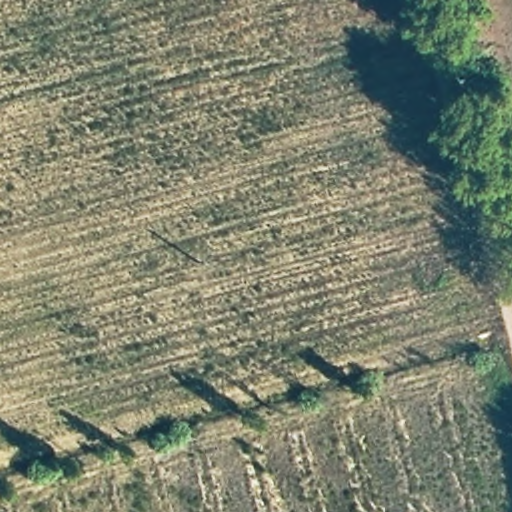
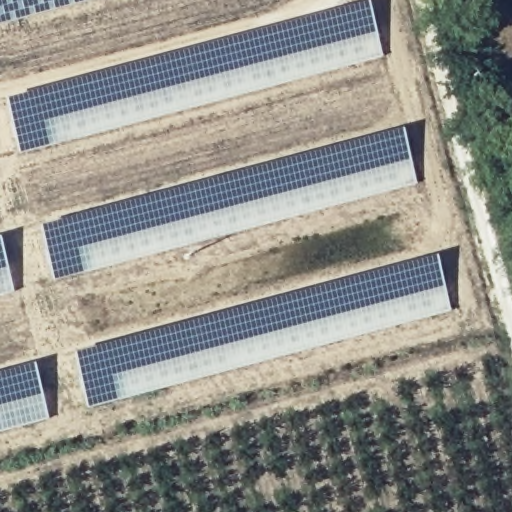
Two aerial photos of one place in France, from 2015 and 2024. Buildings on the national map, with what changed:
new [(90,0),(0,24),(0,0),(90,0)]
new [(4,100),(365,3),(380,57),(18,154),(4,100)]
new [(38,227),(400,130),(413,184),(52,280),(38,227)]
new [(10,292),(0,295),(0,251),(10,292)]
new [(72,353),(433,257),(447,311),(86,409),(72,353)]
new [(31,365),(46,419),(0,432),(0,373),(31,365)]

